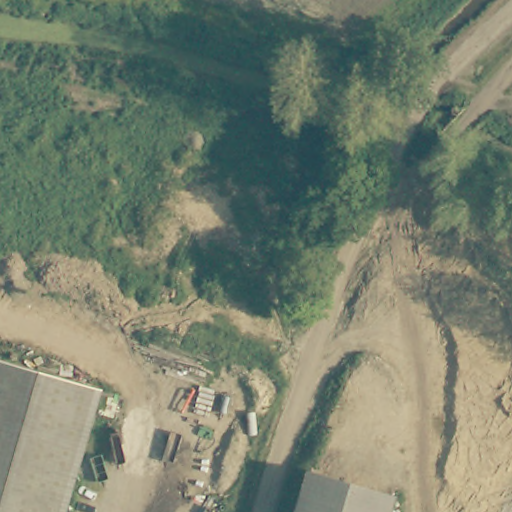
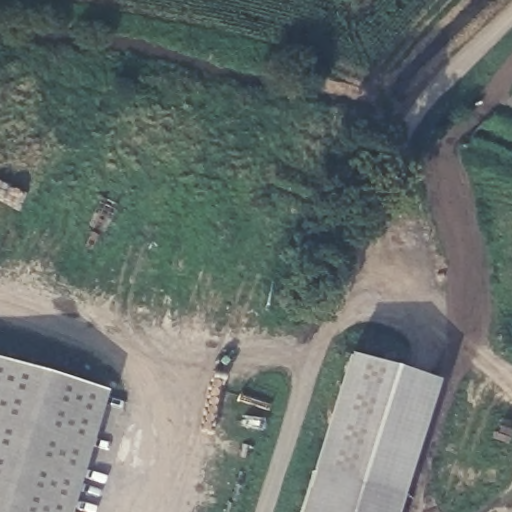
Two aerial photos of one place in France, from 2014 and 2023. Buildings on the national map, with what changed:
new [(399,499),(314,474),(310,472),(345,355),(434,382),(399,499)]
unchanged [(36,393),(15,474),(5,512),(0,512),(0,366),(38,378),(36,393)]
unchanged [(66,512),(5,512),(15,474),(36,393),(38,378),(99,395),(66,512)]
unchanged [(398,512),(303,512),(314,474),(401,500),(398,512)]

